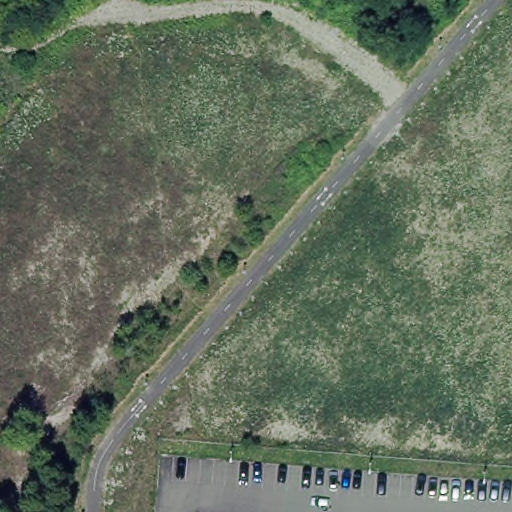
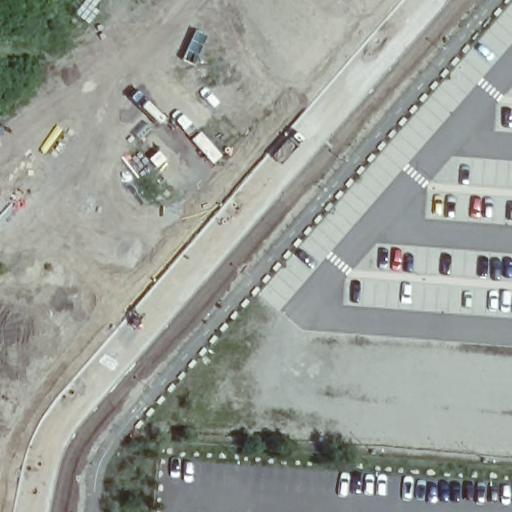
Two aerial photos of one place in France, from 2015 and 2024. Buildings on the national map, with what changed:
unchanged [(380,0),(381,1),(354,11),(350,0),(380,0)]

